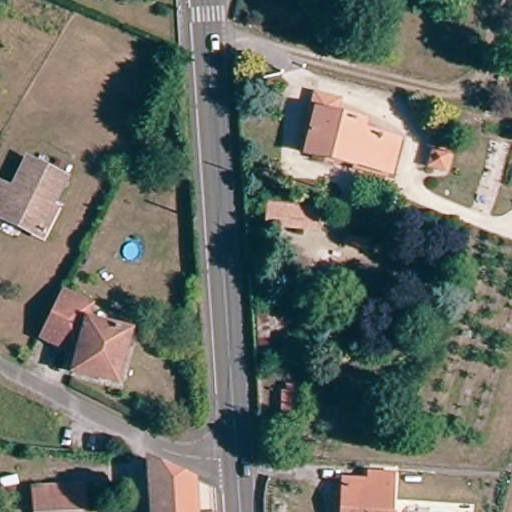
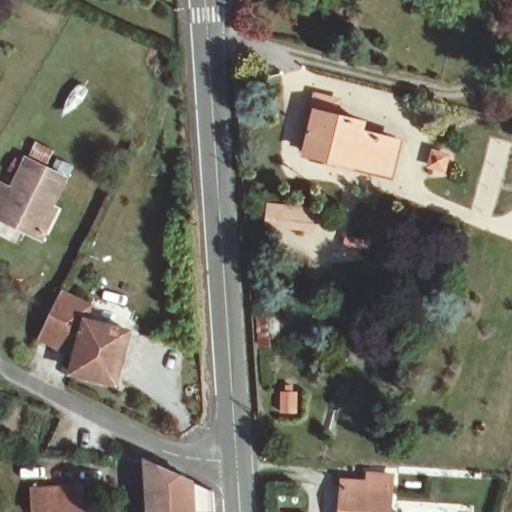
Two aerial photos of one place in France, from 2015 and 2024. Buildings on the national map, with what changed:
unchanged [(316,124),(321,101),(343,107),(339,122),(368,130),(367,132),(377,134),(375,141),(407,149),(400,180),(358,170),(358,171),(340,167),(338,172),(310,166),(306,164),(316,124)]
unchanged [(443,169),(431,166),(434,153),(447,157),(443,169)]
unchanged [(37,233),(0,215),(0,184),(6,187),(22,157),(59,176),(44,205),(49,207),(46,214),(37,233)]
unchanged [(321,241),(287,242),(287,221),(320,220),(321,241)]
unchanged [(118,383),(75,372),(79,356),(41,337),(64,292),(92,307),(89,321),(132,332),(118,383)]
unchanged [(196,484),(214,492),(215,512),(151,512),(148,462),(196,484)]
unchanged [(345,480),(368,482),(369,475),(391,476),(389,512),(342,512),(343,502),(345,480)]
unchanged [(35,482),(85,485),(84,510),(83,512),(33,512),(34,507),(35,482)]

